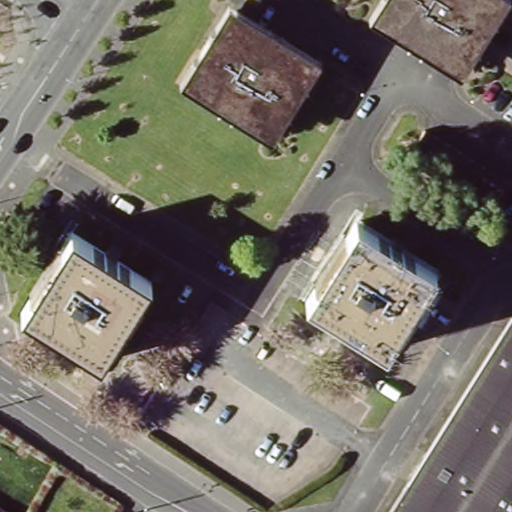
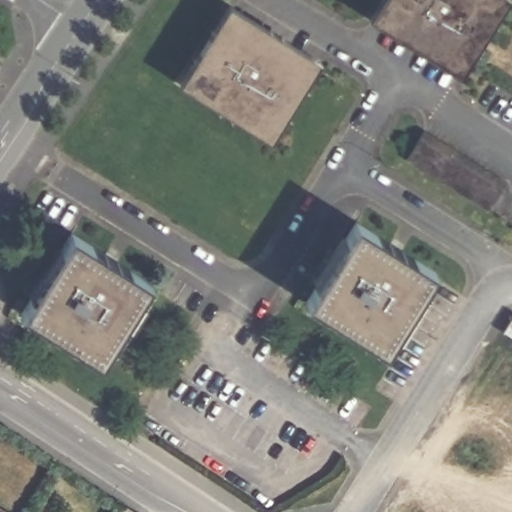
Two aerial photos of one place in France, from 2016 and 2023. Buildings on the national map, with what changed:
unchanged [(392,24),(381,17),(392,0),(506,0),(507,0),(464,69),(400,29),(392,24)]
unchanged [(317,61),(319,62),(276,132),(194,81),(236,12),(317,61)]
unchanged [(505,174),(507,175),(509,176),(492,205),(412,156),(429,127),(505,174)]
unchanged [(366,220),(443,268),(392,349),(315,301),(366,220)]
unchanged [(75,229),(153,278),(103,358),(25,309),(75,229)]
demolished [(449,419),(508,326),(512,319),(512,512),(390,512),(449,419)]
unchanged [(12,512),(0,512),(0,505),(12,512)]

